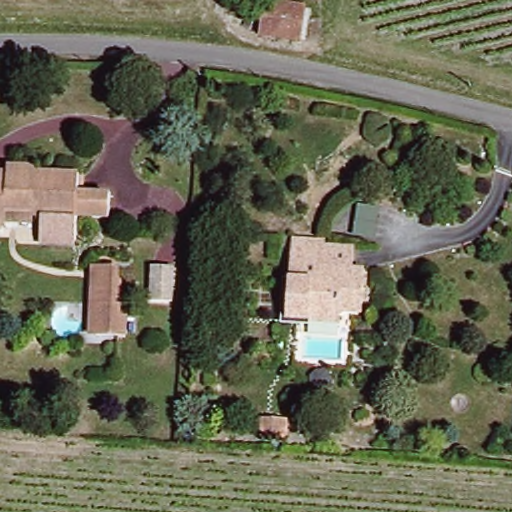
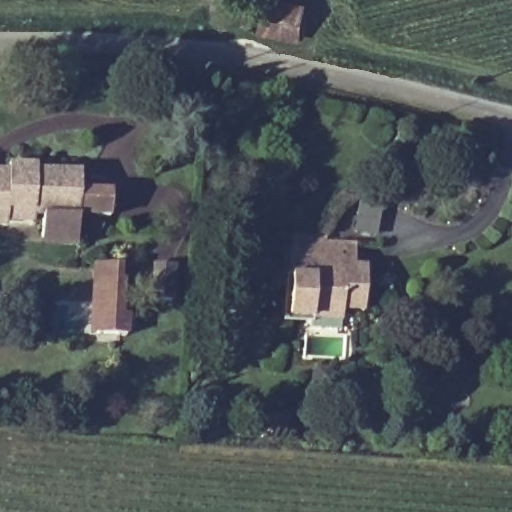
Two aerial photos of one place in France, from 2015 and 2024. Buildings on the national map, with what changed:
unchanged [(260,30),(267,0),(290,0),(305,4),(297,39),(260,30)]
unchanged [(0,217),(0,175),(5,176),(10,159),(30,162),(30,170),(80,177),(77,194),(110,199),(105,221),(76,216),(70,242),(35,237),(40,215),(29,213),(27,221),(2,217),(0,217)]
unchanged [(314,318),(282,313),(291,249),(292,237),(328,241),(328,245),(353,250),(353,266),(367,268),(362,313),(343,310),(343,302),(318,298),(314,318)]
unchanged [(90,330),(93,262),(110,263),(110,275),(117,278),(113,313),(117,314),(115,333),(90,330)]
unchanged [(270,437),(271,421),(293,422),(291,438),(270,437)]

